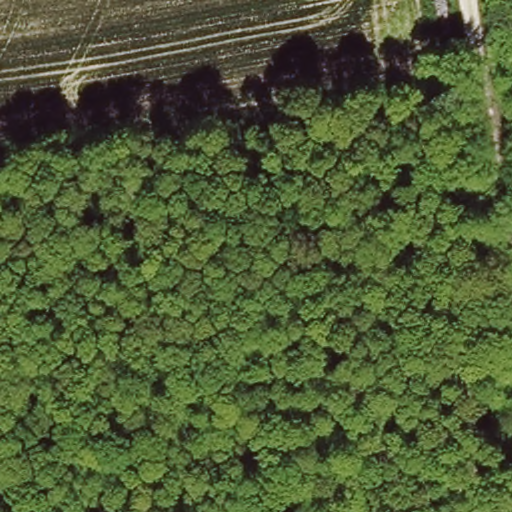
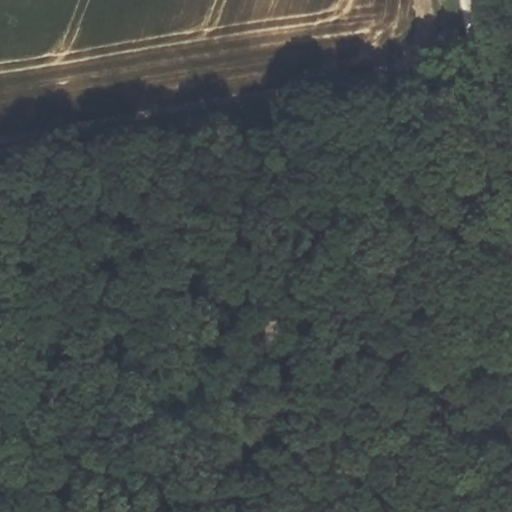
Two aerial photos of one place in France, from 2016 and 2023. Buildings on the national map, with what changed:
[]

